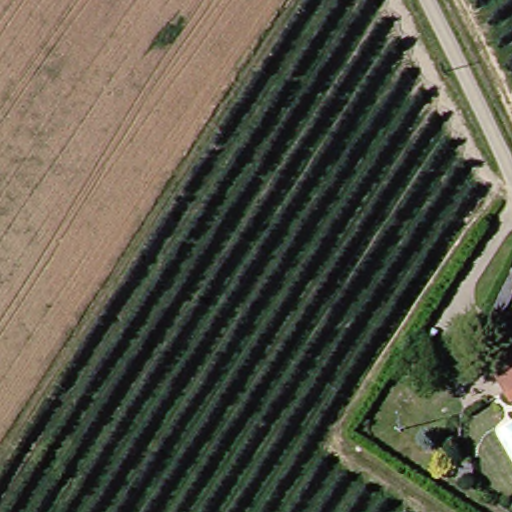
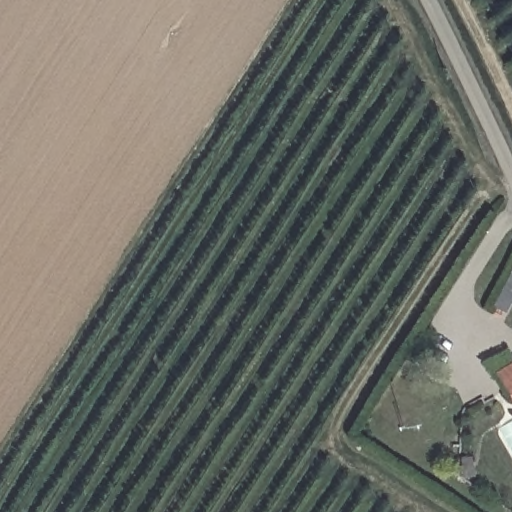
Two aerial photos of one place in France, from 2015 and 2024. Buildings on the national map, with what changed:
unchanged [(512,367),(512,404),(496,377),(512,367)]

